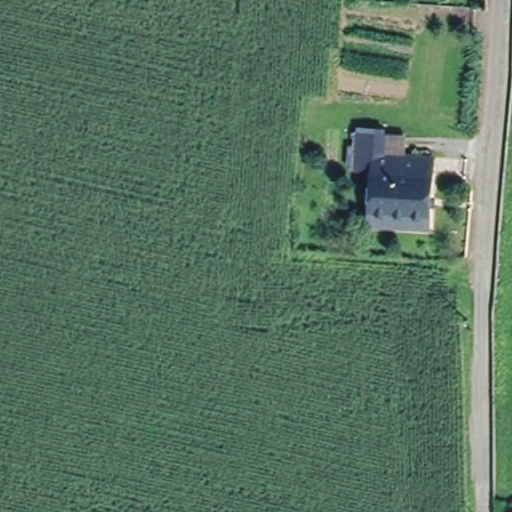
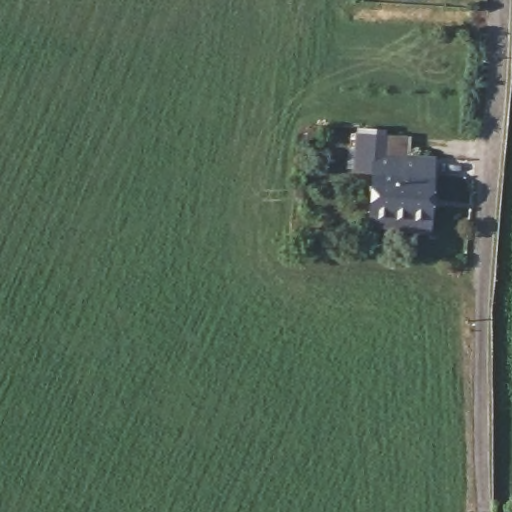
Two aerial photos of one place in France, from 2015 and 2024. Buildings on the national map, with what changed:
unchanged [(391,232),(367,231),(370,178),(351,176),(354,142),(354,140),(384,142),(383,144),(382,158),(432,161),(429,224),(428,234),(391,232)]

